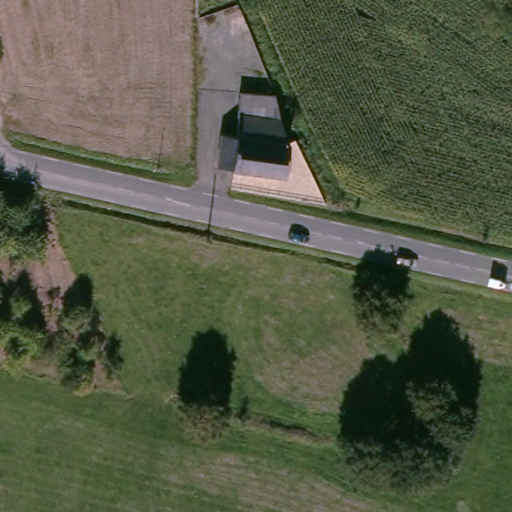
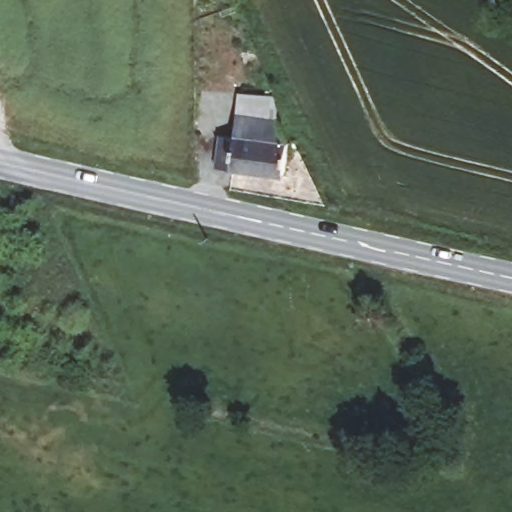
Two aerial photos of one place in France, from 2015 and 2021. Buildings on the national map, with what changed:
unchanged [(225,129),(241,130),(243,88),(280,89),(282,110),(292,136),(290,169),(221,161),(225,129)]

